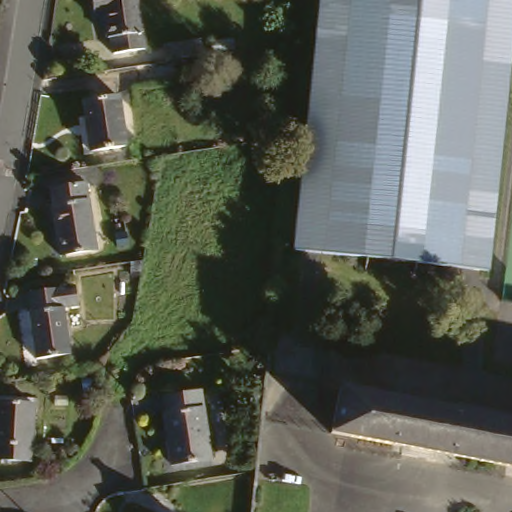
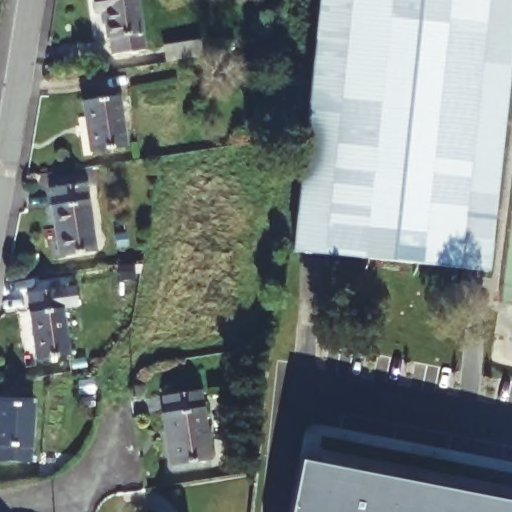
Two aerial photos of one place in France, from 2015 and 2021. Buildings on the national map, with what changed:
unchanged [(94,14),(92,0),(138,0),(144,50),(113,55),(110,39),(108,39),(103,12),(94,14)]
unchanged [(473,271),(317,255),(302,253),(293,252),(294,247),(320,0),(512,0),(512,36),(487,272),(473,271)]
unchanged [(201,41),(203,56),(167,62),(164,47),(201,41)]
unchanged [(83,102),(118,97),(126,147),(90,152),(83,102)]
unchanged [(96,251),(60,257),(52,207),(53,207),(51,189),(86,184),(96,251)]
unchanged [(29,307),(31,307),(28,287),(75,281),(78,301),(63,303),(71,350),(36,355),(29,307)]
unchanged [(260,404),(251,403),(252,389),(261,390),(260,404)]
unchanged [(339,389),(512,421),(512,468),(331,434),(339,389)]
unchanged [(211,460),(171,466),(164,415),(166,414),(163,397),(201,392),(211,460)]
unchanged [(33,405),(30,462),(0,461),(0,403),(33,405)]
new [(298,463),(512,506),(512,512),(289,512),(298,463)]

